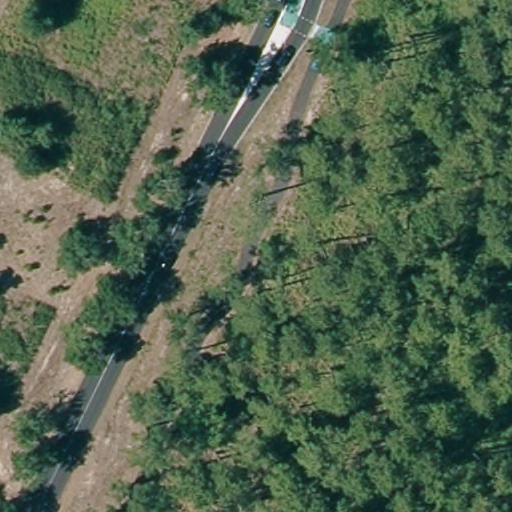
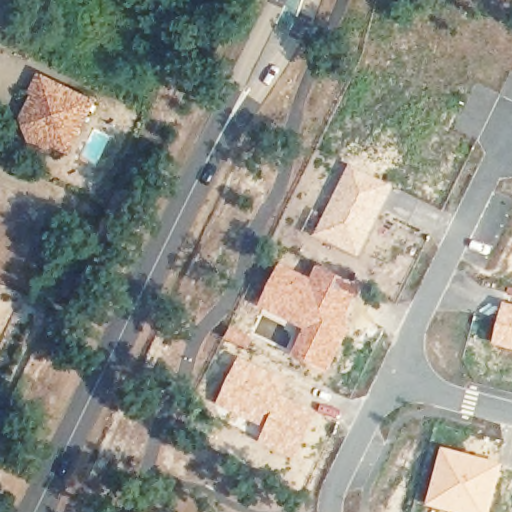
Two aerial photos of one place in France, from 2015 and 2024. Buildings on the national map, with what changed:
new [(41,84),(38,83),(45,67),(98,94),(74,143),(33,123),(29,110),(41,84)]
new [(348,165),(393,188),(357,258),(313,236),(348,165)]
new [(279,263),(309,278),(316,265),(361,286),(346,323),(350,325),(327,375),(288,356),(300,332),(255,309),(279,263)]
new [(512,305),(512,351),(490,346),(502,303),(512,305)]
new [(238,358),(289,383),(285,393),(320,412),(294,462),(257,441),(262,430),(215,406),(238,358)]
new [(441,448),(503,465),(490,512),(445,512),(425,506),(441,448)]

